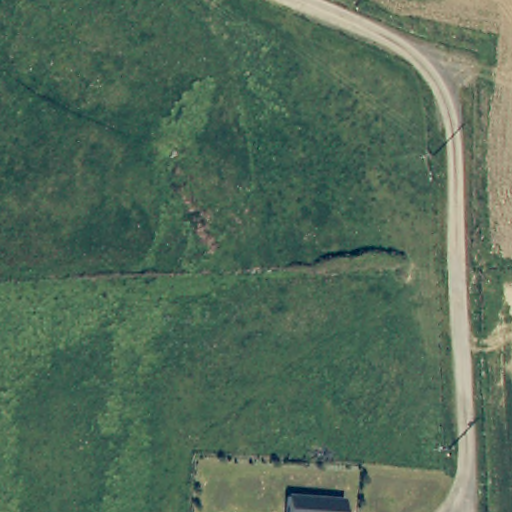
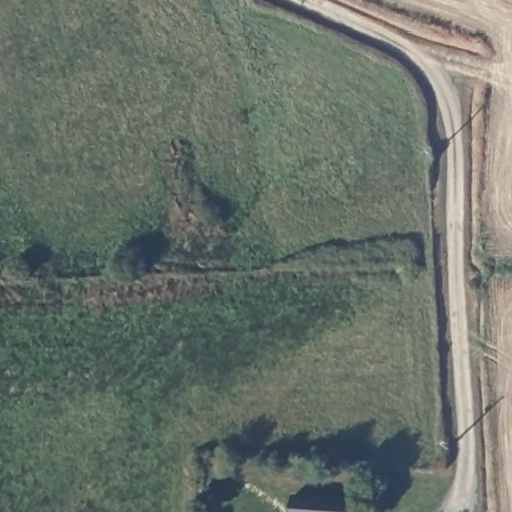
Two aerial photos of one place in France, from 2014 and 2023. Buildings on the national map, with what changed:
unchanged [(358,512),(302,512),(302,504),(358,506),(358,512)]

